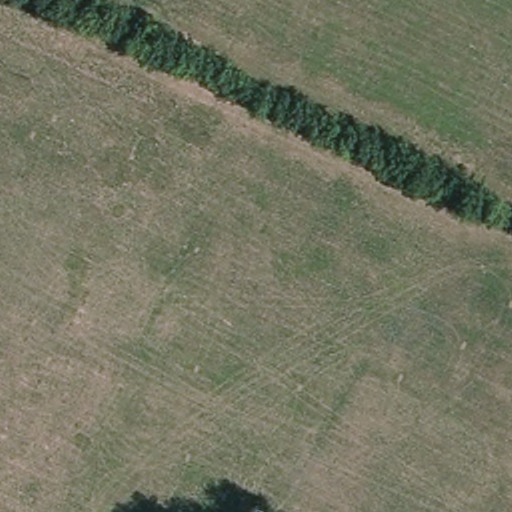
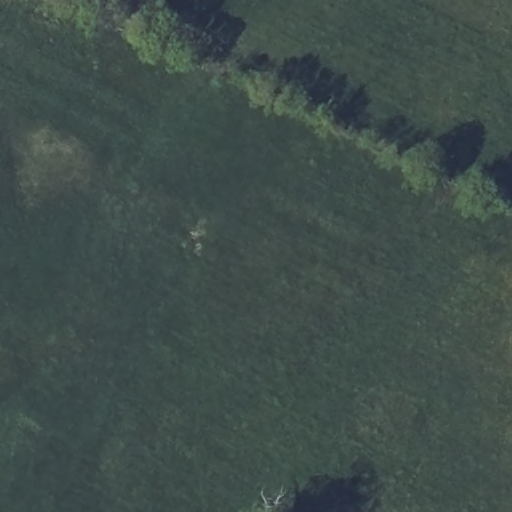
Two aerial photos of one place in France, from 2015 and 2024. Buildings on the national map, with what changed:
[]

